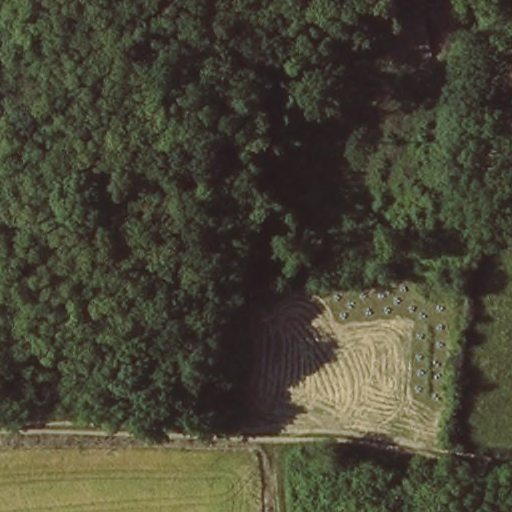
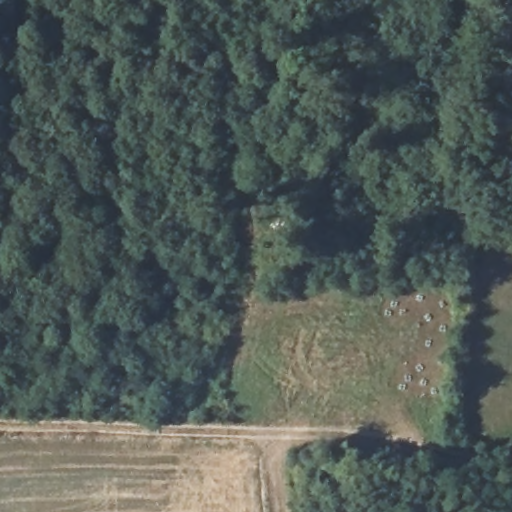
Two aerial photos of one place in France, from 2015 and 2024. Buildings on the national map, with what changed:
[]

